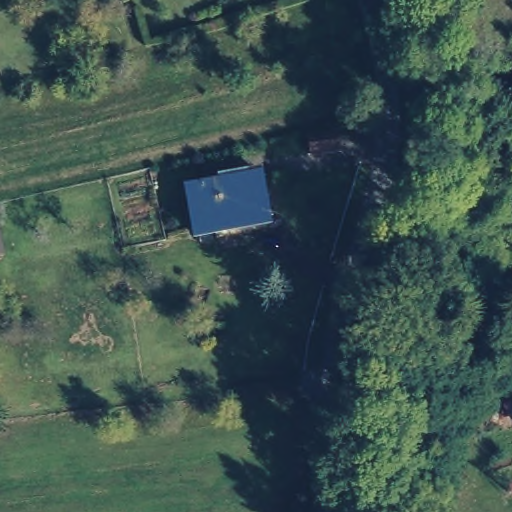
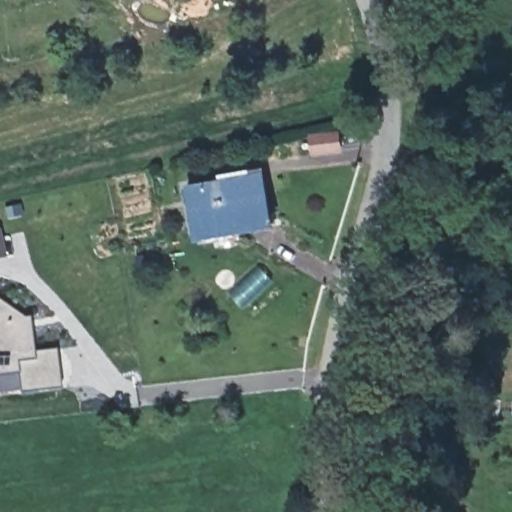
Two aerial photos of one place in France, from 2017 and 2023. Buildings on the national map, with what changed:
unchanged [(348,149),(323,152),(320,135),(346,132),(348,149)]
unchanged [(200,226),(192,181),(262,167),(270,212),(200,226)]
new [(0,301),(24,318),(28,317),(33,352),(55,349),(60,388),(20,393),(17,373),(0,375),(0,301)]

